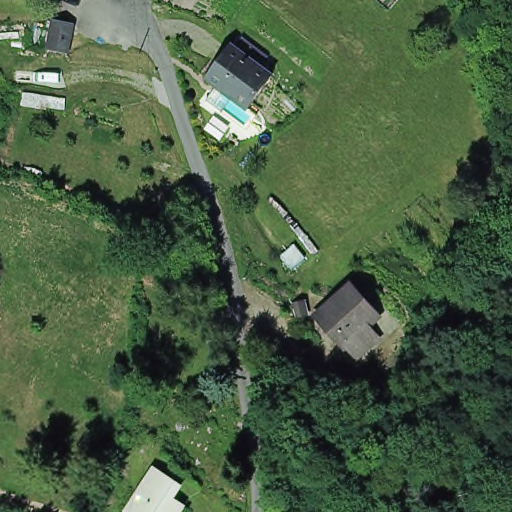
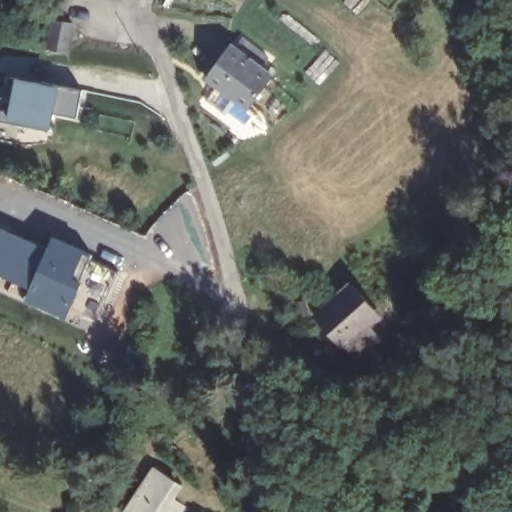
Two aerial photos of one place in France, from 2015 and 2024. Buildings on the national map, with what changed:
unchanged [(63,52),(41,47),(46,17),(69,21),(63,52)]
unchanged [(273,76),(250,111),(207,80),(232,45),(273,76)]
new [(79,90),(74,117),(53,114),(50,130),(0,120),(0,115),(8,75),(59,85),(79,90)]
new [(48,234),(90,250),(86,260),(118,272),(97,320),(69,308),(63,321),(21,303),(25,290),(0,280),(0,225),(43,245),(48,234)]
unchanged [(349,346),(346,350),(316,320),(351,281),(369,299),(383,315),(372,323),(371,325),(381,335),(361,358),(349,346)]
unchanged [(128,512),(162,466),(188,486),(178,498),(182,501),(190,507),(186,512),(128,512)]

